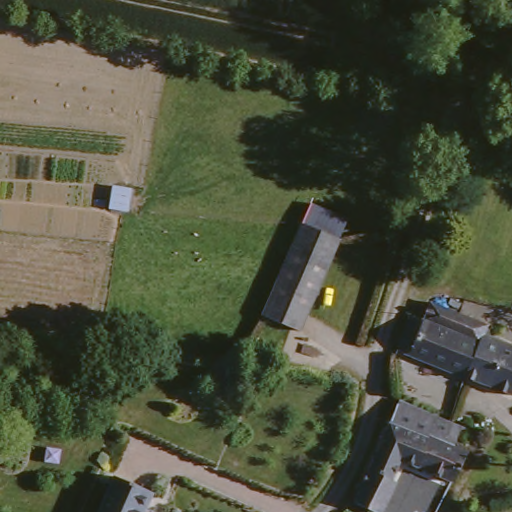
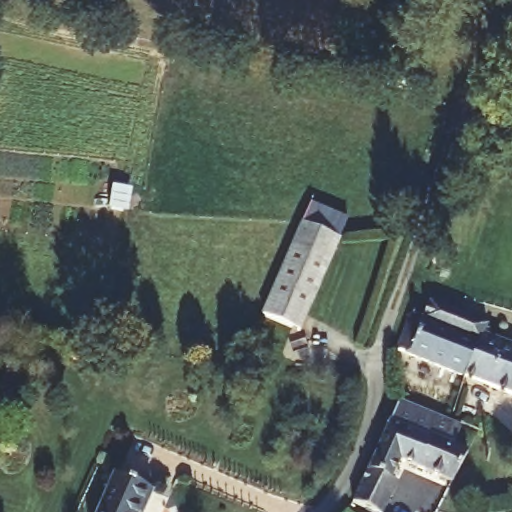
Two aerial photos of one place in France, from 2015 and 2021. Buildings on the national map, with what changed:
unchanged [(314,209),(347,225),(336,247),(305,313),(269,296),(302,231),(314,209)]
unchanged [(426,318),(432,304),(463,315),(459,327),(458,331),(485,341),(472,374),(403,348),(416,314),(426,318)]
unchanged [(458,331),(459,327),(463,315),(466,316),(497,327),(495,334),(512,340),(512,388),(472,374),(485,341),(458,331)]
unchanged [(457,438),(472,445),(457,477),(408,457),(397,478),(402,480),(386,510),(360,502),(377,466),(375,466),(403,395),(411,397),(456,416),(466,420),(457,438)]
unchanged [(150,512),(146,511),(145,512),(103,512),(120,471),(160,487),(150,512)]

